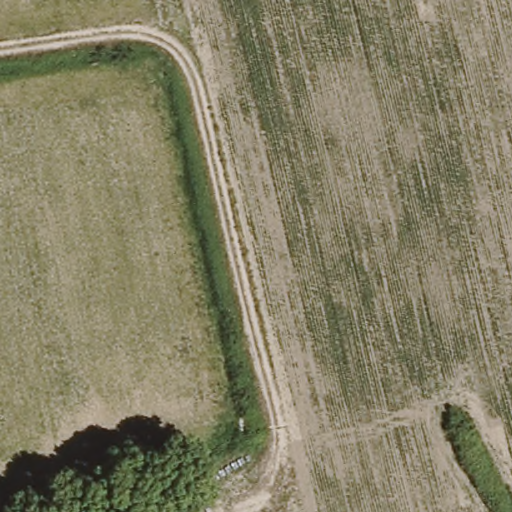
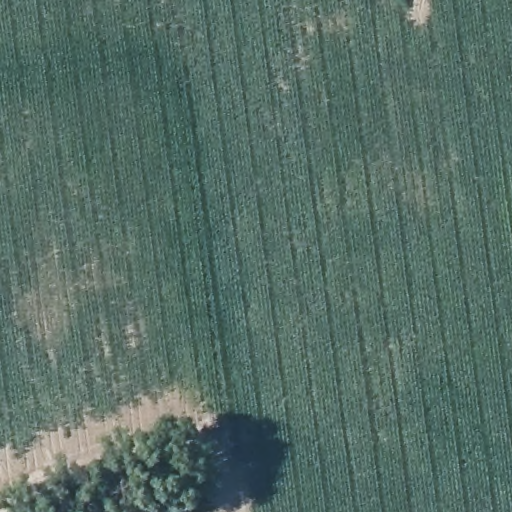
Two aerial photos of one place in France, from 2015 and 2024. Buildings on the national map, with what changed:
unchanged [(179,483),(189,512),(83,512),(179,483)]

